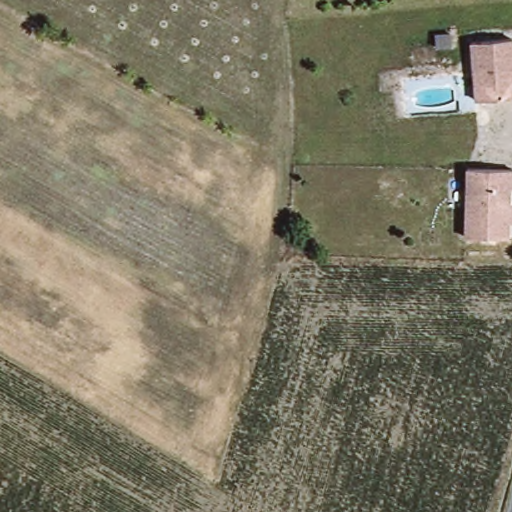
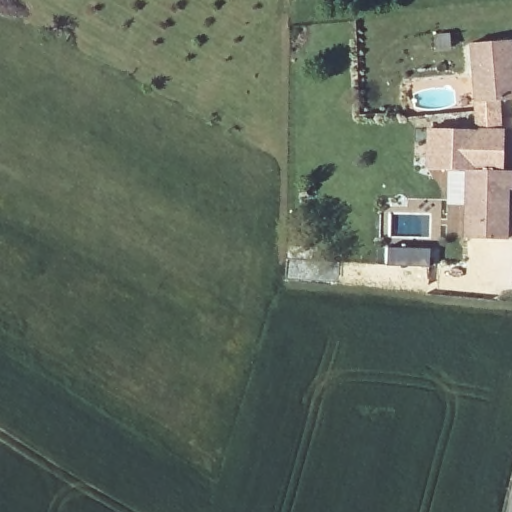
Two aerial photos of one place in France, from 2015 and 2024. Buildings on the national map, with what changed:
unchanged [(467,43),(509,40),(512,74),(512,98),(472,102),(467,43)]
new [(461,166),(427,165),(428,127),(505,128),(502,167),(461,166)]
unchanged [(507,167),(507,184),(502,186),(501,236),(458,234),(461,166),(507,167)]

